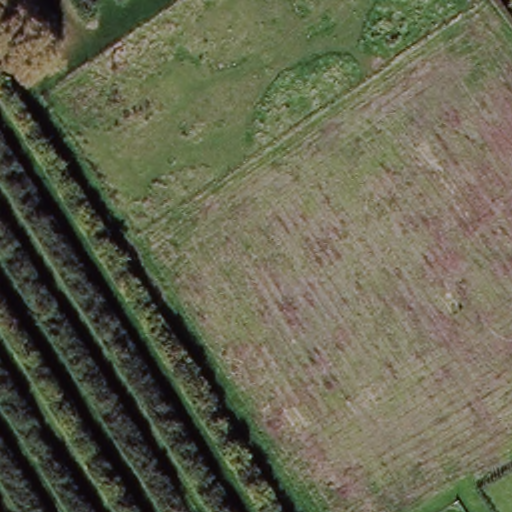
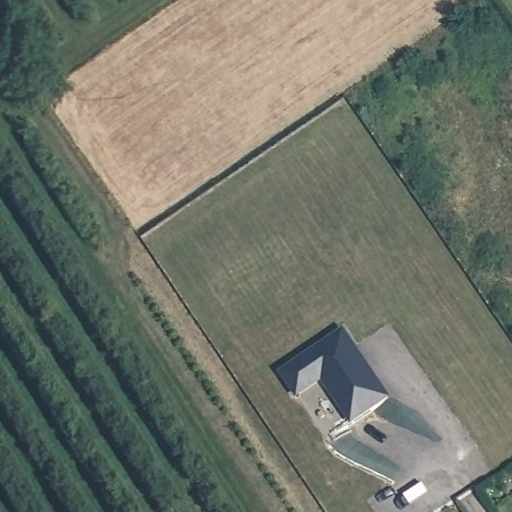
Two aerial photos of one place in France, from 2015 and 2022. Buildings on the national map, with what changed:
new [(351,425),(322,382),(297,399),(280,373),(345,330),(391,398),(351,425)]

